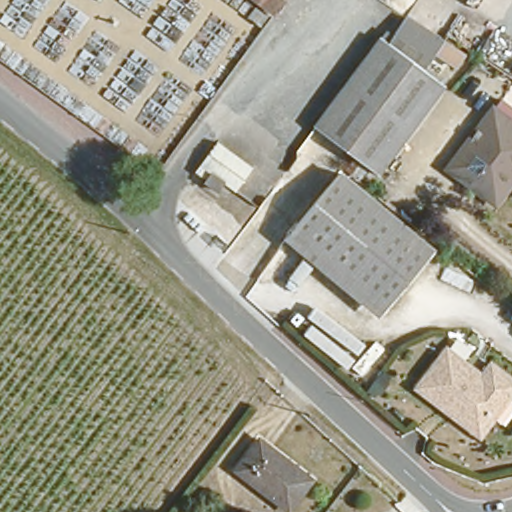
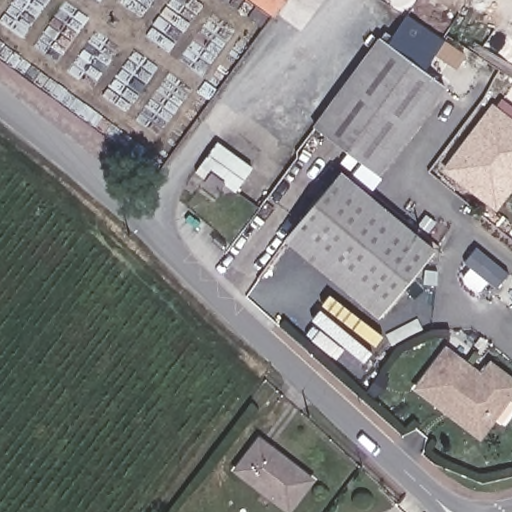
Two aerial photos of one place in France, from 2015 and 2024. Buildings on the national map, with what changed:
unchanged [(275,10),(261,0),(282,0),(275,10)]
unchanged [(312,123),(387,22),(394,26),(406,11),(431,30),(344,147),(312,123)]
unchanged [(375,171),(344,147),(431,30),(462,53),(454,65),(435,52),(430,59),(448,72),(401,135),(375,171)]
unchanged [(466,186),(439,166),(483,104),(487,107),(496,95),(512,108),(512,177),(491,206),(466,186)]
unchanged [(364,295),(287,235),(339,170),(412,229),(364,295)]
unchanged [(364,295),(412,229),(428,242),(433,246),(382,309),(375,303),(364,295)]
unchanged [(444,409),(414,386),(445,346),(481,373),(490,361),(512,378),(512,392),(508,397),(512,400),(512,408),(502,422),(493,416),(480,436),(444,409)]
unchanged [(287,507),(235,468),(262,436),(313,475),(287,507)]

